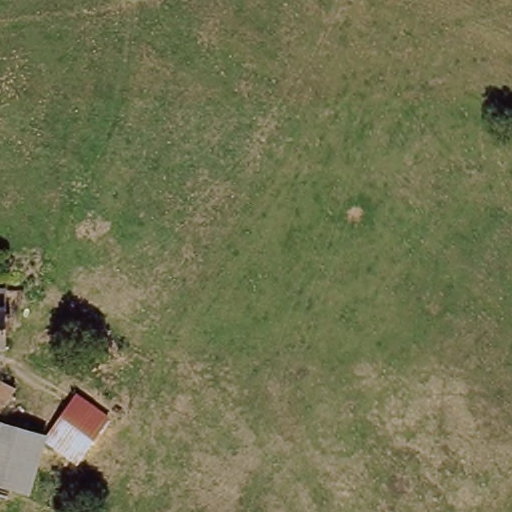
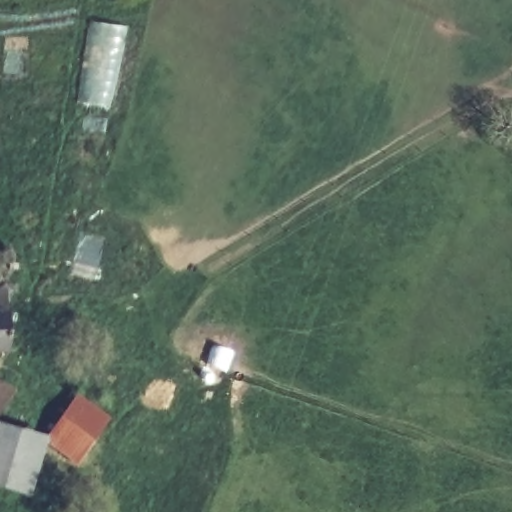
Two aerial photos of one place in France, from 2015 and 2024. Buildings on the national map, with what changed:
new [(89,19),(128,25),(111,107),(75,101),(89,19)]
unchanged [(0,350),(0,310),(3,310),(3,315),(14,316),(22,321),(21,333),(14,339),(5,341),(5,349),(0,350)]
unchanged [(0,383),(14,389),(0,422),(0,383)]
unchanged [(74,395),(108,417),(76,466),(44,445),(29,493),(0,486),(0,422),(46,434),(74,395)]

